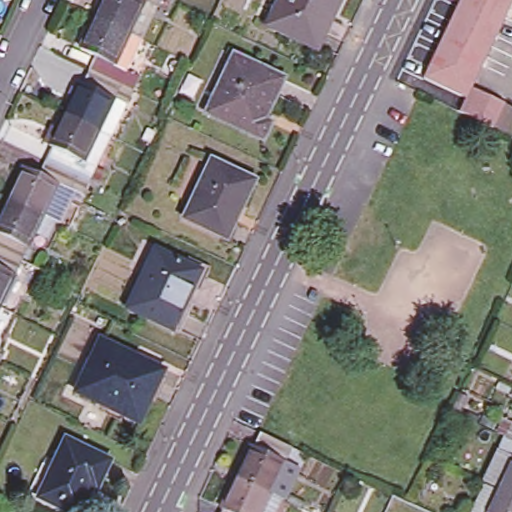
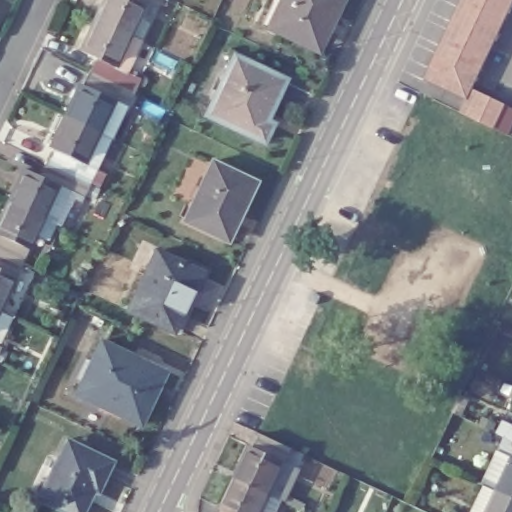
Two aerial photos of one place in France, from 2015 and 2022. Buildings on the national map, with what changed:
unchanged [(93,10),(98,0),(139,0),(127,26),(140,33),(124,66),(135,71),(129,85),(85,64),(92,50),(77,43),(93,10)]
unchanged [(152,0),(156,0),(155,1),(152,0)]
unchanged [(265,31),(280,0),(340,0),(313,55),(265,31)]
unchanged [(426,85),(467,0),(512,0),(512,8),(471,93),(503,109),(492,133),(460,117),(466,103),(426,85)]
unchanged [(261,138),(252,134),(205,111),(230,53),(279,75),(260,116),(270,121),(261,138)]
unchanged [(43,154),(50,141),(45,138),(60,108),(75,76),(78,78),(85,64),(129,85),(122,99),(107,131),(92,162),(86,176),(43,154)]
unchanged [(0,245),(0,204),(7,191),(22,161),(36,168),(43,154),(86,176),(79,189),(54,177),(39,208),(52,214),(42,231),(30,228),(17,254),(0,245)]
unchanged [(235,213),(231,213),(220,236),(182,217),(210,159),(252,179),(235,213)]
unchanged [(0,288),(0,245),(17,254),(0,288)]
unchanged [(173,331),(130,310),(157,253),(201,274),(173,331)]
unchanged [(140,420),(77,390),(102,337),(136,354),(133,359),(162,373),(140,420)]
unchanged [(505,443),(512,430),(512,463),(498,457),(505,443)]
unchanged [(217,511),(232,480),(247,449),(250,449),(257,435),(288,450),(266,496),(278,502),(273,512),(220,512),(217,511)]
unchanged [(97,489),(92,486),(79,512),(74,512),(38,495),(66,437),(112,458),(97,489)]
unchanged [(512,466),(512,501),(498,494),(512,466)]
unchanged [(498,494),(512,501),(512,512),(490,512),(498,494)]

